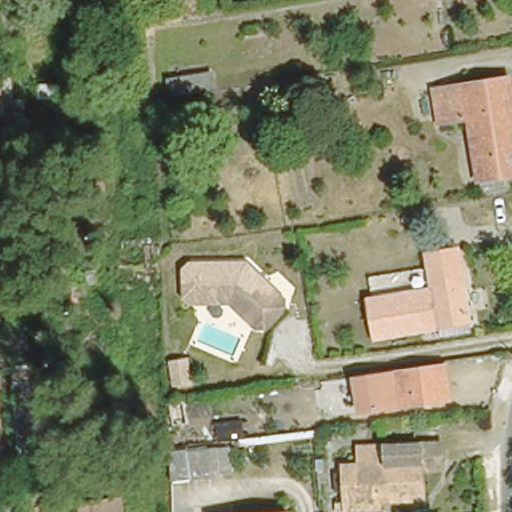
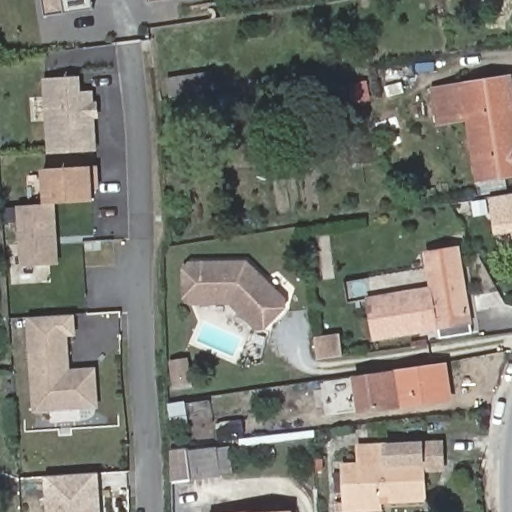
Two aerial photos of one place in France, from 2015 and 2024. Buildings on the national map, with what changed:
new [(64,13),(44,16),(41,0),(61,0),(64,13)]
new [(148,1),(148,0),(155,0),(148,1)]
unchanged [(438,109),(436,87),(509,72),(512,94),(512,98),(455,107),(438,109)]
new [(93,103),(96,103),(98,118),(94,118),(97,151),(46,153),(41,78),(79,76),(80,91),(92,91),(93,103)]
unchanged [(197,110),(178,114),(174,95),(194,91),(199,110),(197,110)]
unchanged [(469,114),(440,121),(438,109),(455,107),(512,98),(512,125),(472,132),(469,114)]
unchanged [(512,168),(481,174),(475,152),(472,132),(512,125),(512,168)]
new [(19,265),(15,206),(42,204),(40,168),(90,165),(97,165),(99,189),(92,189),(93,202),(53,204),(58,263),(19,265)]
new [(494,234),(488,197),(512,193),(512,244),(510,232),(494,234)]
unchanged [(453,245),(461,303),(465,329),(436,333),(433,333),(431,323),(367,332),(365,319),(362,294),(426,285),(425,279),(421,249),(453,245)]
unchanged [(191,306),(186,301),(184,273),(185,272),(189,268),(229,266),(246,265),(284,301),(284,308),(265,328),(257,328),(239,311),(231,304),(191,306)]
new [(95,409),(80,410),(33,412),(27,320),(72,318),(73,337),(65,337),(67,374),(78,374),(92,373),(95,409)]
new [(340,336),(343,356),(318,360),(315,340),(340,336)]
unchanged [(389,367),(438,360),(443,396),(442,396),(395,402),(355,408),(350,372),(389,367)]
unchanged [(440,439),(443,468),(422,471),(426,500),(390,503),(388,487),(376,487),(377,503),(345,505),(342,467),(358,466),(357,445),(440,439)]
unchanged [(225,444),(227,479),(168,484),(167,448),(225,444)]
new [(95,483),(96,512),(45,512),(44,486),(95,483)]
demolished [(121,512),(78,512),(79,501),(122,501),(121,512)]
unchanged [(293,512),(195,512),(293,509),(293,512)]

